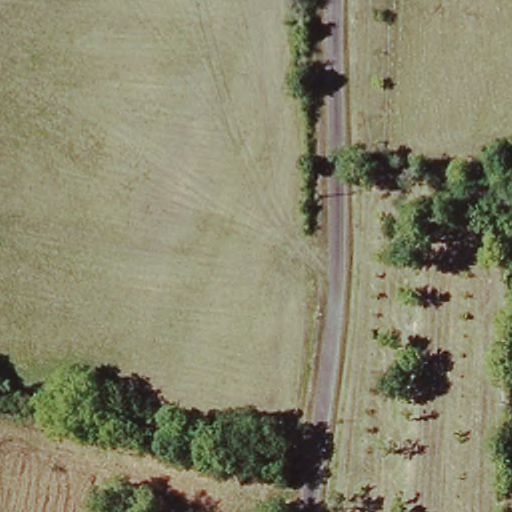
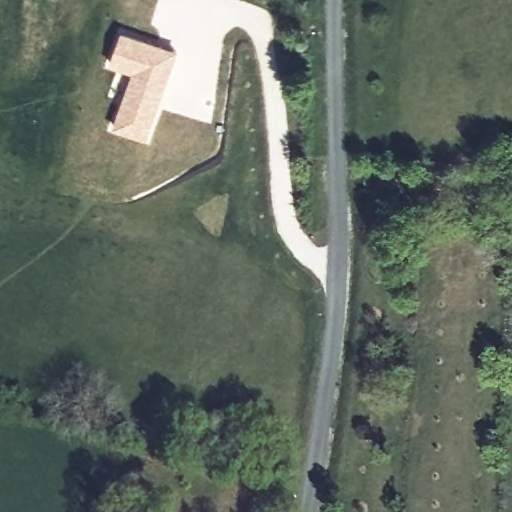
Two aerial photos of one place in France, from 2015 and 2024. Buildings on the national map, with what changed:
new [(121,29),(179,51),(148,145),(109,130),(131,72),(108,65),(121,29)]

